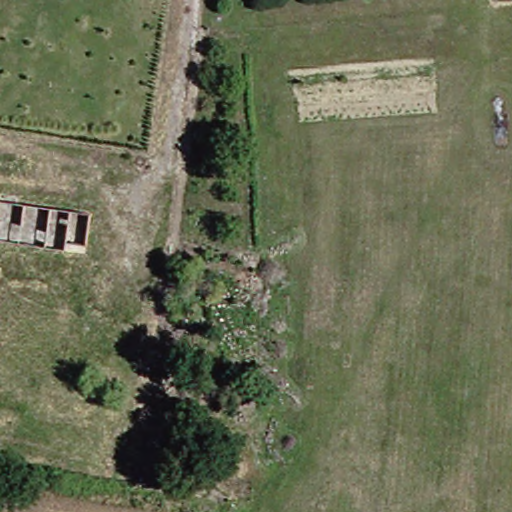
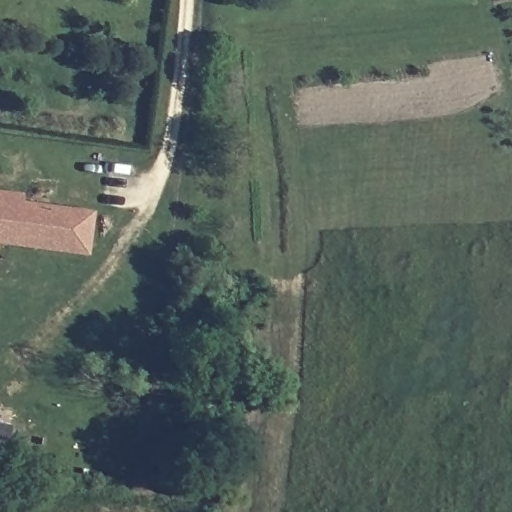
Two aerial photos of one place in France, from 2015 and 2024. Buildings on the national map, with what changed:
new [(23,194),(22,201),(95,211),(88,257),(0,245),(0,190),(23,194)]

